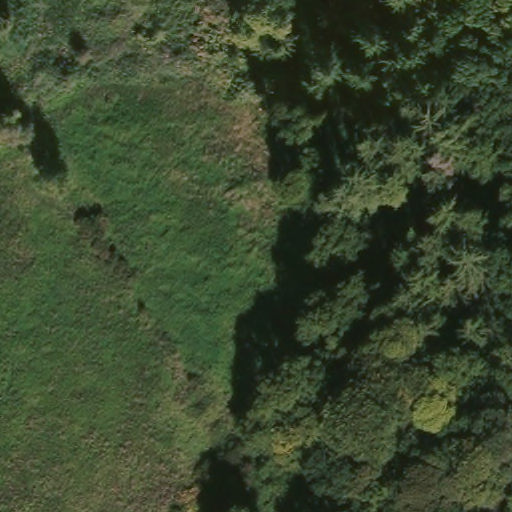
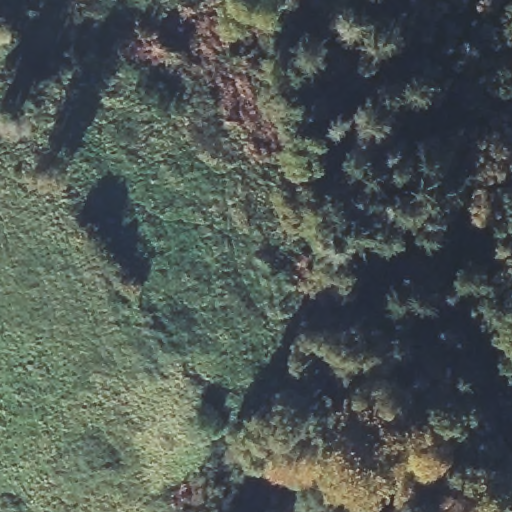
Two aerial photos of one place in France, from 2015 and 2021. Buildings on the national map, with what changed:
[]

